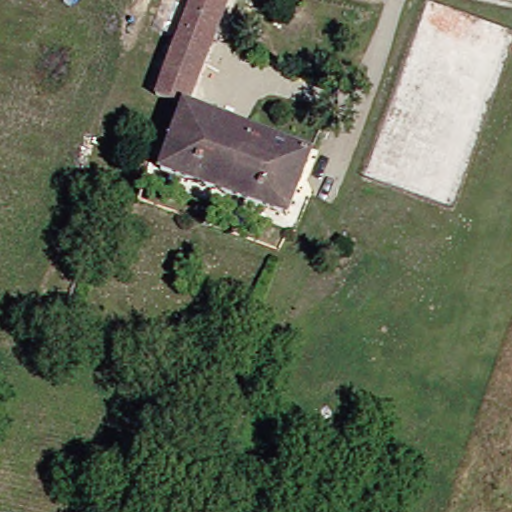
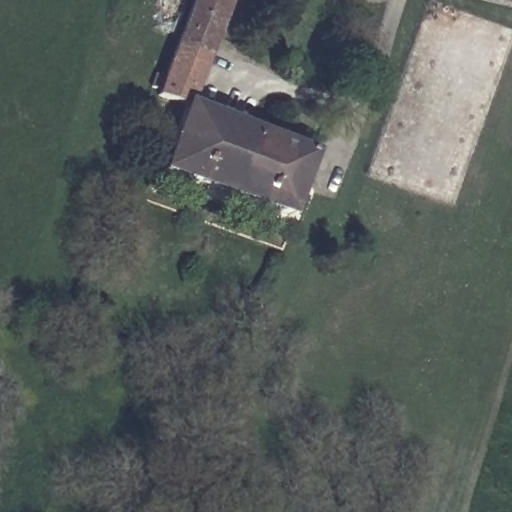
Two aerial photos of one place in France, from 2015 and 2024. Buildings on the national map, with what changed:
unchanged [(317,149),(293,213),(170,167),(193,109),(161,97),(163,93),(155,90),(157,81),(170,82),(200,0),(238,0),(199,107),(317,149)]

